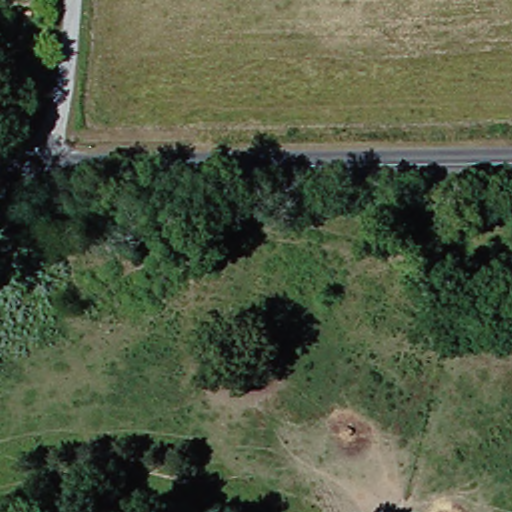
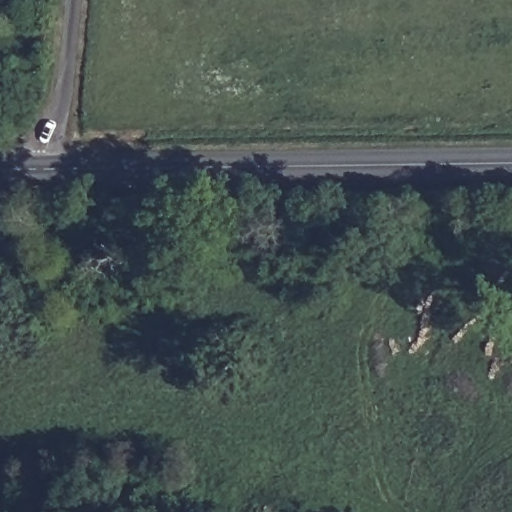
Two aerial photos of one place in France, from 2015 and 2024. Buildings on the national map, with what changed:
[]

